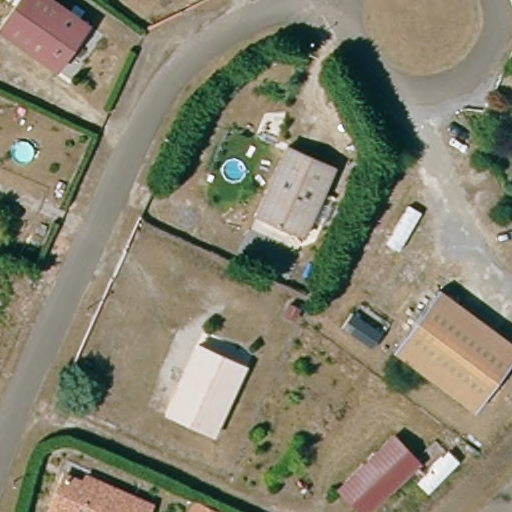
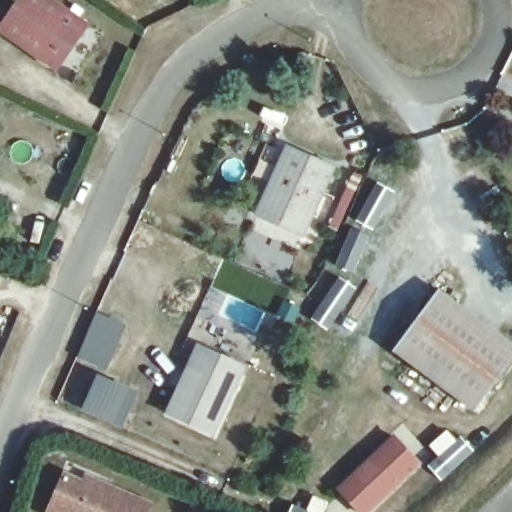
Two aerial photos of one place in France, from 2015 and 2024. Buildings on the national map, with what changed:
unchanged [(0,28),(0,20),(14,0),(58,0),(87,20),(55,66),(0,28)]
unchanged [(301,237),(254,215),(285,146),(332,168),(301,237)]
unchanged [(391,353),(437,290),(512,345),(512,359),(472,413),(391,353)]
unchanged [(300,313),(287,308),(291,300),(303,304),(300,313)]
new [(78,358),(97,312),(126,325),(107,370),(78,358)]
unchanged [(216,431),(169,410),(200,341),(247,362),(216,431)]
new [(82,410),(98,375),(137,390),(121,429),(82,410)]
unchanged [(366,512),(359,512),(337,489),(392,437),(417,465),(366,512)]
unchanged [(50,505),(62,475),(81,483),(84,477),(149,505),(145,512),(46,512),(50,505)]
unchanged [(223,512),(191,512),(197,497),(224,508),(223,512)]

